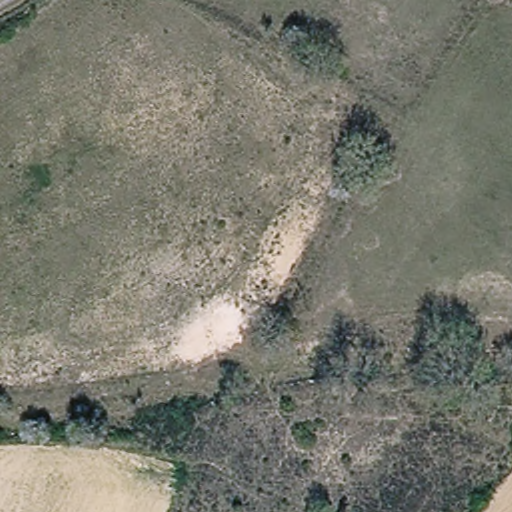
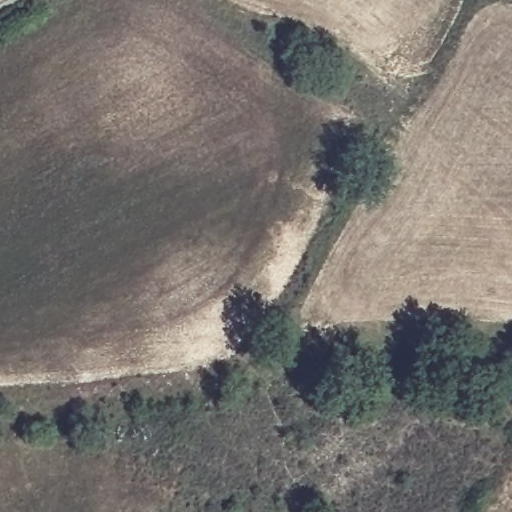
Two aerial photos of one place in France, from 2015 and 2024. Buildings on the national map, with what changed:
[]

